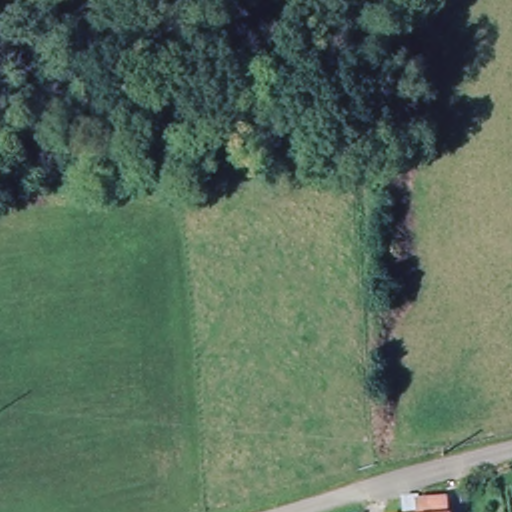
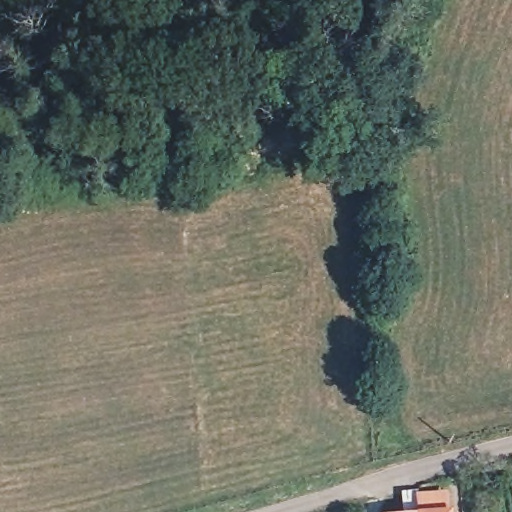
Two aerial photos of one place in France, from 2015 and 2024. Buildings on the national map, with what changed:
unchanged [(416,509),(445,511),(445,512),(401,512),(416,509)]

